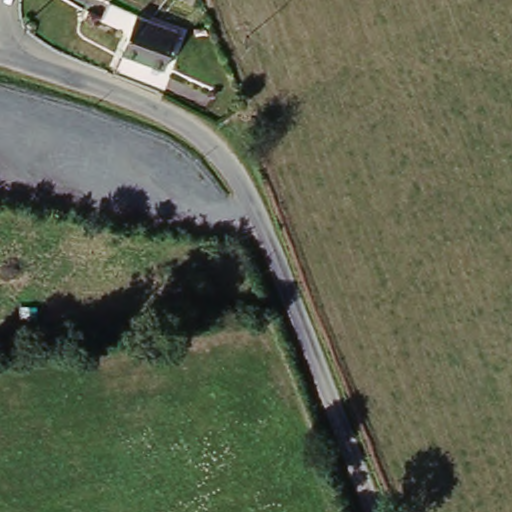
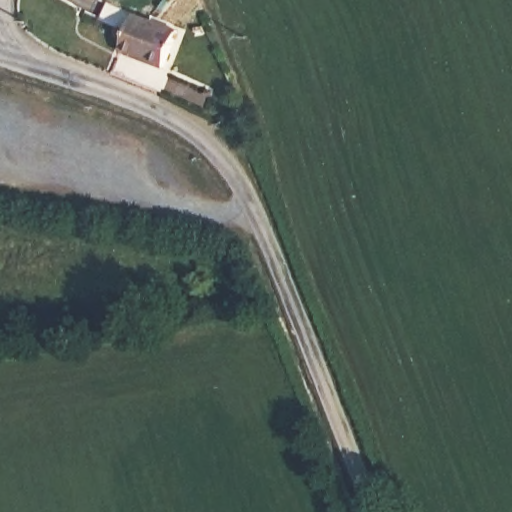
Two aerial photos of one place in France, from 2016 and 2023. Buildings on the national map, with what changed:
unchanged [(138,62),(139,58),(124,51),(133,34),(106,17),(116,2),(141,19),(180,39),(162,74),(138,62)]

